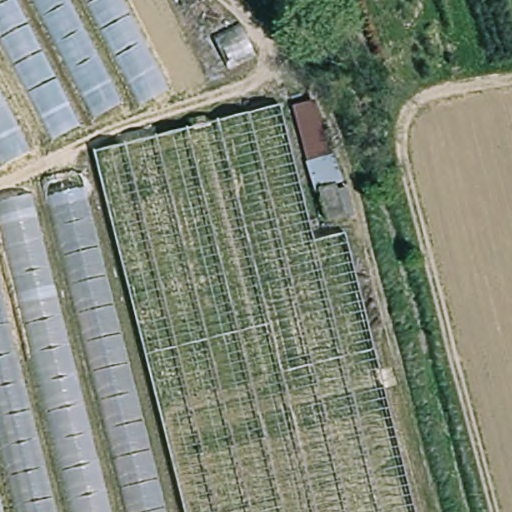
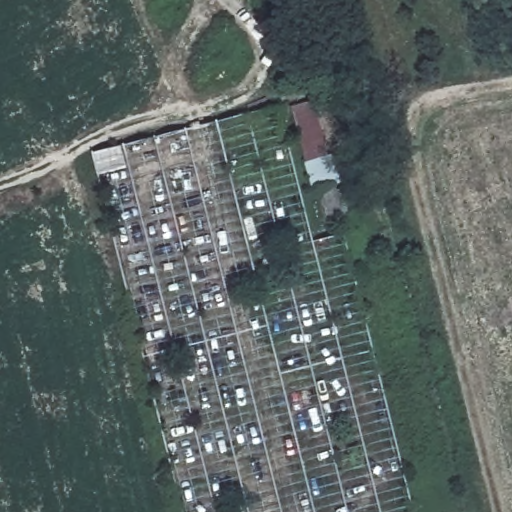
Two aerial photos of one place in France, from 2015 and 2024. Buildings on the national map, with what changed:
demolished [(135,100),(0,169),(0,0),(121,0),(167,91),(138,106),(135,100)]
demolished [(211,38),(237,26),(257,58),(228,71),(211,38)]
unchanged [(292,106),(316,101),(336,186),(347,185),(356,215),(325,223),(292,106)]
unchanged [(418,512),(185,512),(95,152),(281,105),(316,240),(345,234),(418,512)]
demolished [(162,512),(0,512),(0,210),(78,174),(162,512)]

